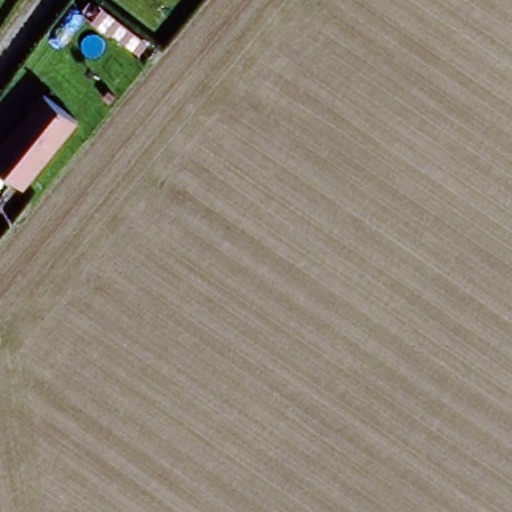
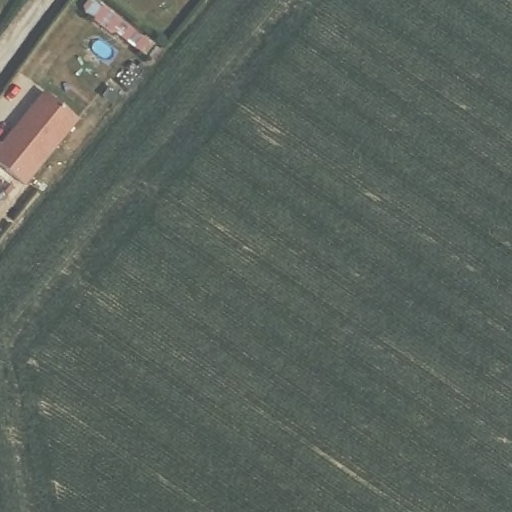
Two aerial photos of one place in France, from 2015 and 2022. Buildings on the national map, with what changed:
unchanged [(79,129),(32,191),(0,166),(0,145),(41,94),(79,129)]

